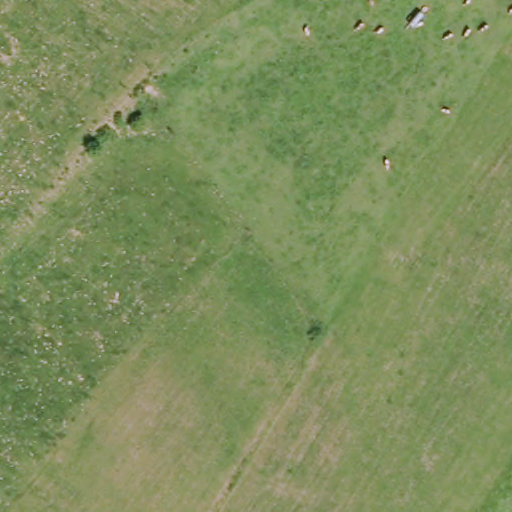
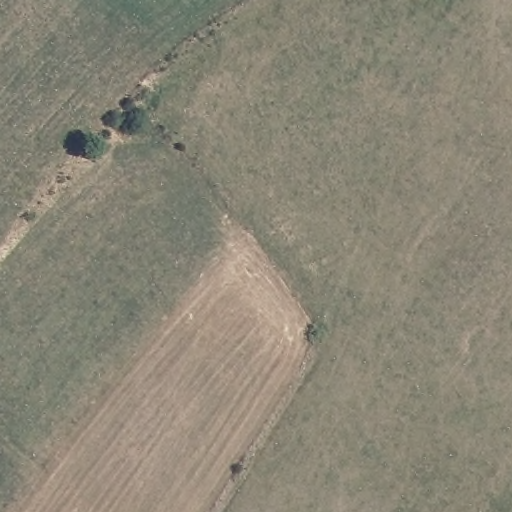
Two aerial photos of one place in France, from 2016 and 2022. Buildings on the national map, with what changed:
[]

